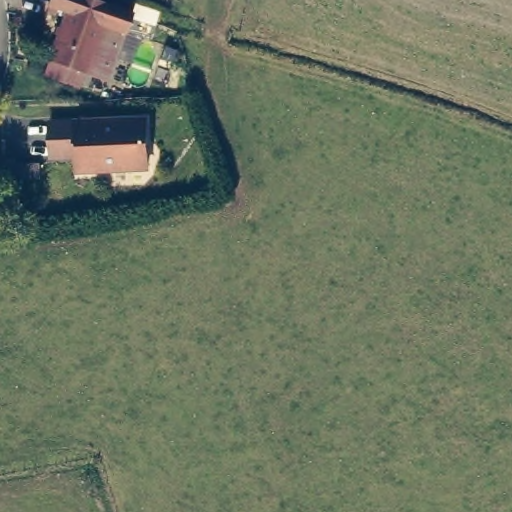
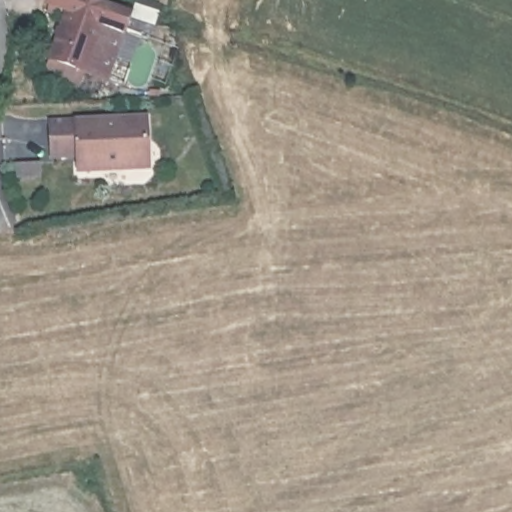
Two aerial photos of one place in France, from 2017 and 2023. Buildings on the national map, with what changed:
unchanged [(45,68),(50,55),(66,7),(48,1),(49,0),(105,0),(131,10),(108,76),(85,68),(85,67),(80,80),(45,68)]
unchanged [(146,114),(148,164),(98,165),(98,160),(78,161),(77,151),(52,153),(50,117),(146,114)]

